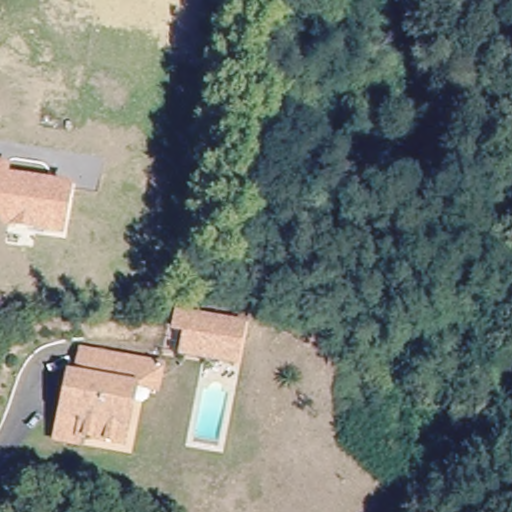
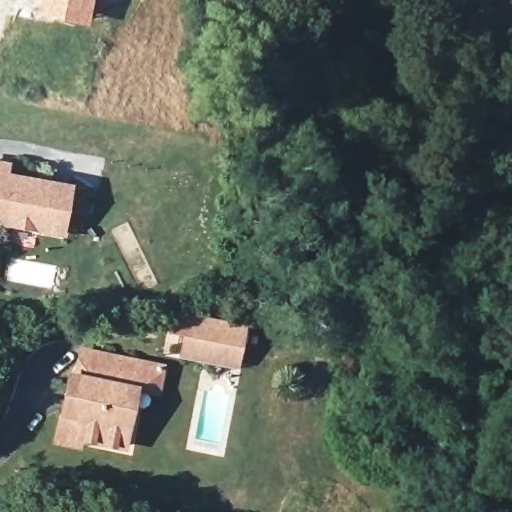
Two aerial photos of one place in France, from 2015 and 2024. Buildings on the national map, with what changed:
new [(97,0),(92,25),(39,15),(43,0),(97,0)]
unchanged [(11,165),(9,173),(73,186),(64,239),(5,229),(0,221),(0,163),(11,165)]
unchanged [(246,329),(238,365),(185,352),(190,332),(178,330),(182,315),(246,329)]
unchanged [(62,410),(71,371),(79,373),(85,347),(139,360),(164,365),(158,391),(137,386),(129,425),(128,425),(123,443),(81,433),(80,441),(57,435),(63,410),(62,410)]

